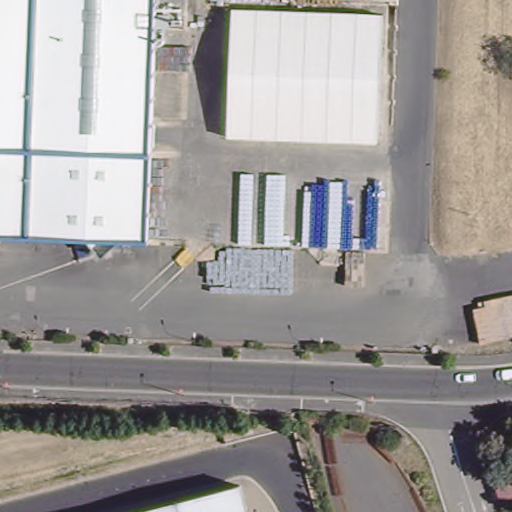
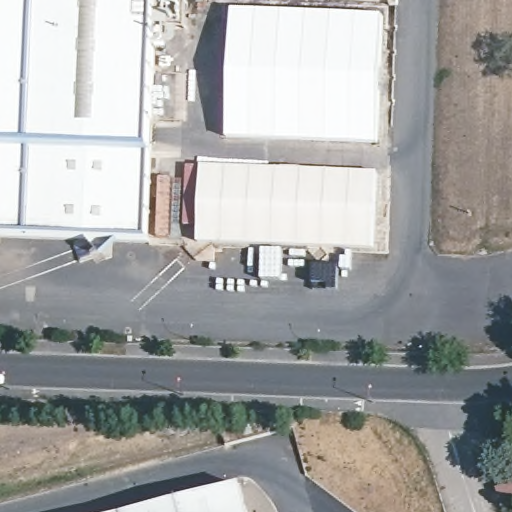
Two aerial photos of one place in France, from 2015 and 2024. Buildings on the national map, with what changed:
unchanged [(150,149),(147,240),(0,233),(0,0),(155,0),(150,149)]
unchanged [(383,14),(380,142),(227,136),(233,10),(383,14)]
new [(373,249),(196,244),(198,232),(201,164),(375,172),(373,249)]
unchanged [(250,512),(124,512),(242,481),(250,512)]

